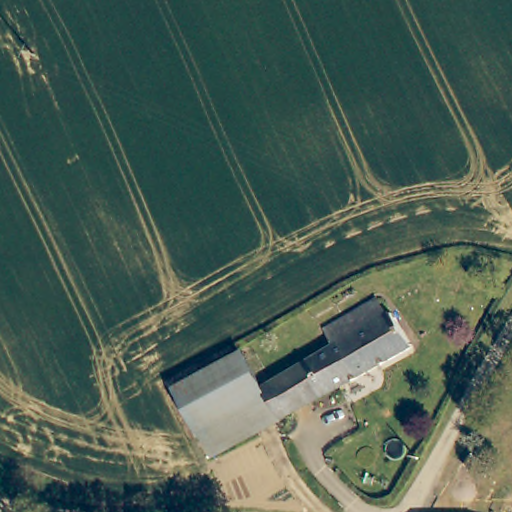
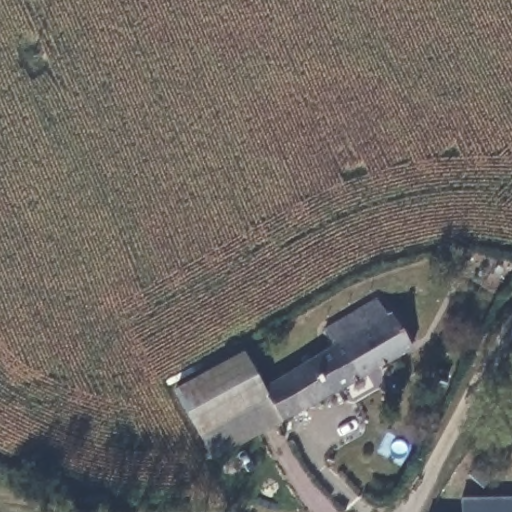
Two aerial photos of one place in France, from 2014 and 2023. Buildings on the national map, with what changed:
unchanged [(280,420),(261,389),(335,346),(324,328),(368,303),(377,297),(391,319),(407,344),(280,420)]
unchanged [(280,420),(211,462),(169,395),(235,360),(242,356),(261,389),(280,420)]
new [(460,496),(512,496),(512,512),(461,512),(460,496)]

